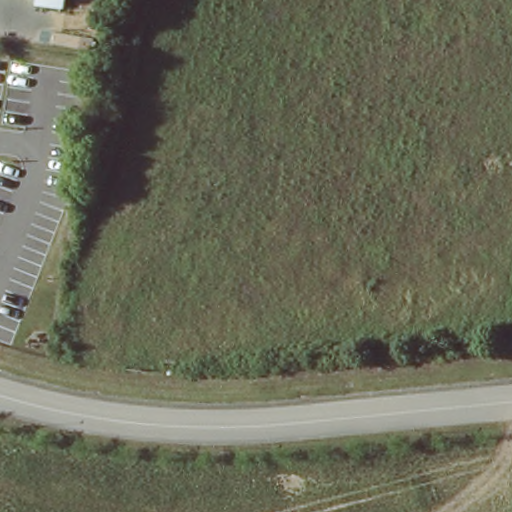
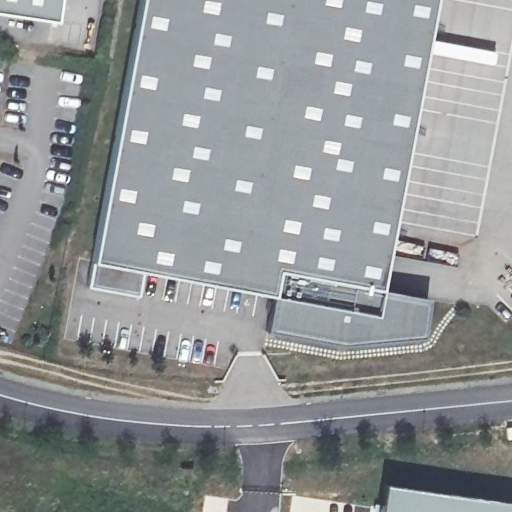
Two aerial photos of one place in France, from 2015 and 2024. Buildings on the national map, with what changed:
new [(60,25),(0,16),(0,0),(64,0),(60,25)]
demolished [(40,4),(41,0),(75,0),(74,8),(40,4)]
new [(379,288),(379,292),(425,299),(421,337),(336,345),(264,332),(266,293),(131,269),(138,295),(85,286),(88,262),(88,261),(137,0),(432,0),(379,288)]
new [(383,482),(512,500),(512,512),(374,512),(375,507),(383,482)]

